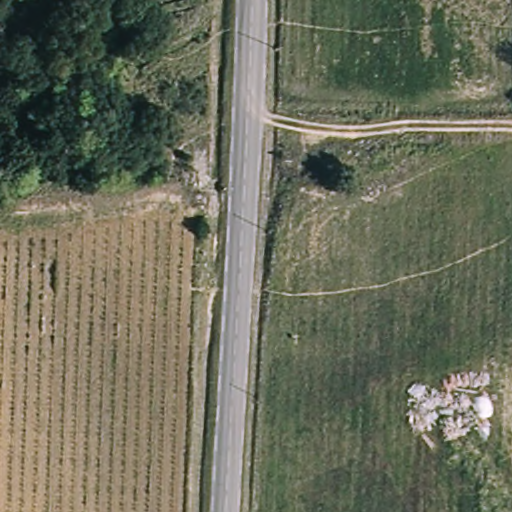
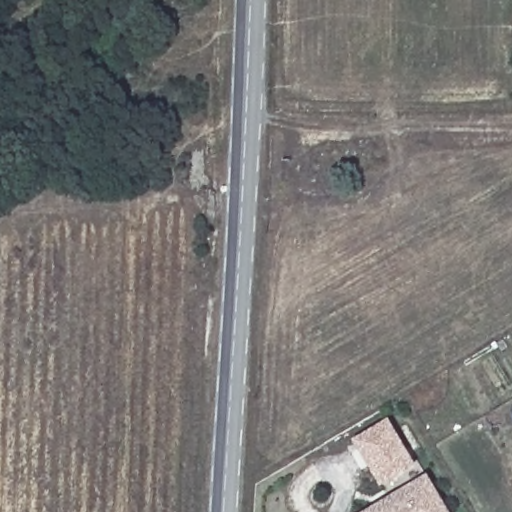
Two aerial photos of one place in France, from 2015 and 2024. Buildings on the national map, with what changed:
new [(389,417),(415,460),(383,480),(357,437),(389,417)]
new [(429,476),(450,512),(367,512),(429,476)]

